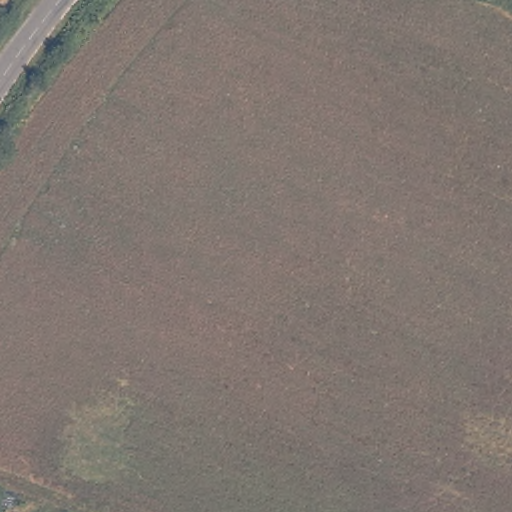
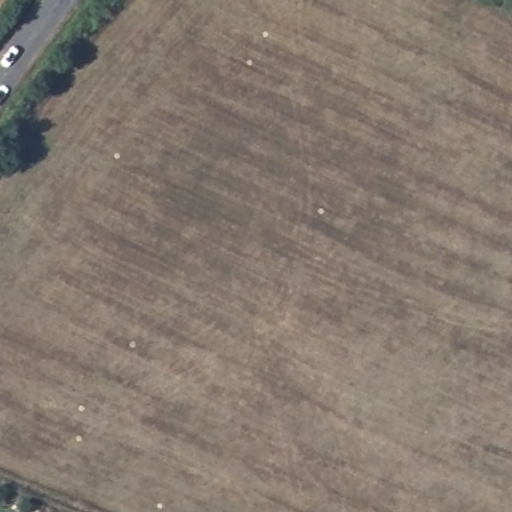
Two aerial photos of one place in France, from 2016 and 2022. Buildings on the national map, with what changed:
[]

